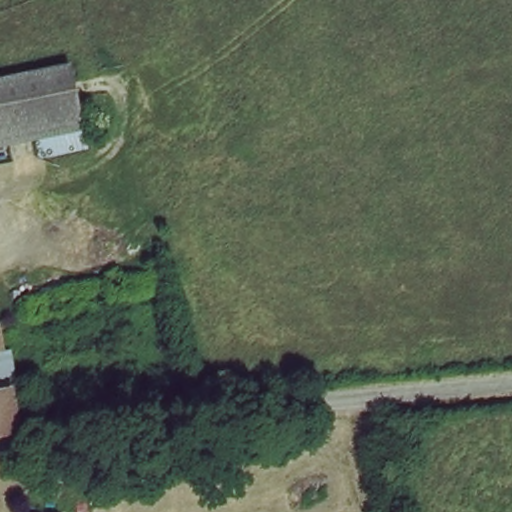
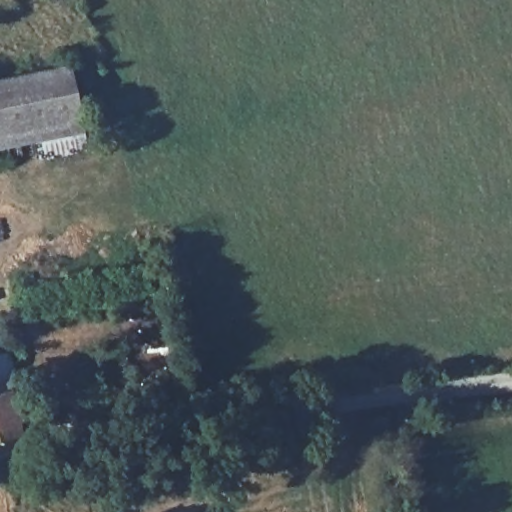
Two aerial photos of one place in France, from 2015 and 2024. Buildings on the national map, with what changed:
unchanged [(65,65),(82,133),(0,149),(0,78),(65,65)]
unchanged [(7,323),(29,428),(0,432),(0,324),(7,323)]

